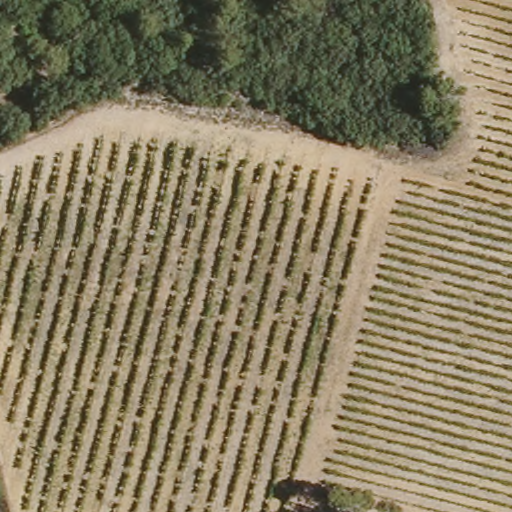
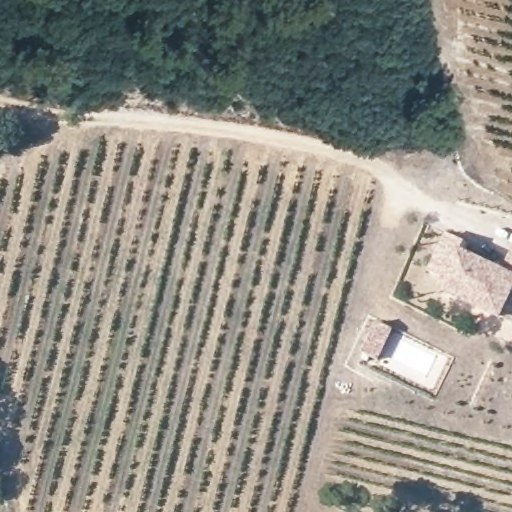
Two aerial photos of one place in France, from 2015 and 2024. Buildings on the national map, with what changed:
new [(455,300),(459,290),(440,281),(458,242),(477,251),(472,261),(512,279),(512,326),(455,300)]

